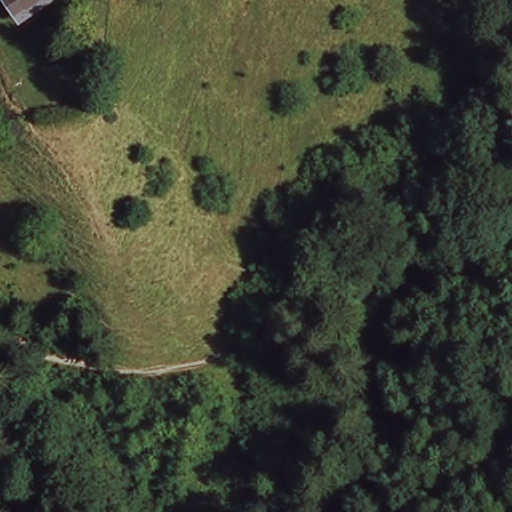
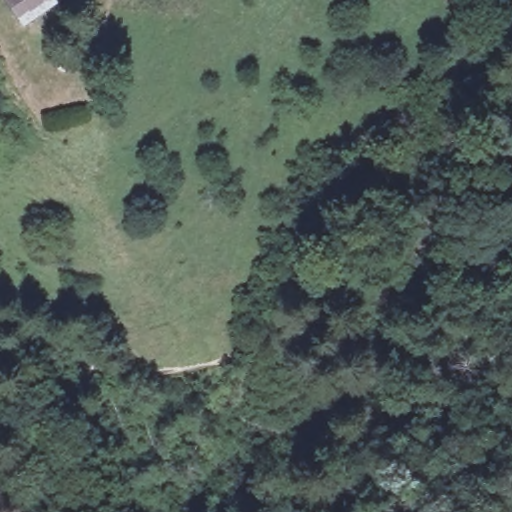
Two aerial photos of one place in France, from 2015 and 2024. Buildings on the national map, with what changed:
unchanged [(17,21),(3,0),(47,0),(48,1),(17,21)]

